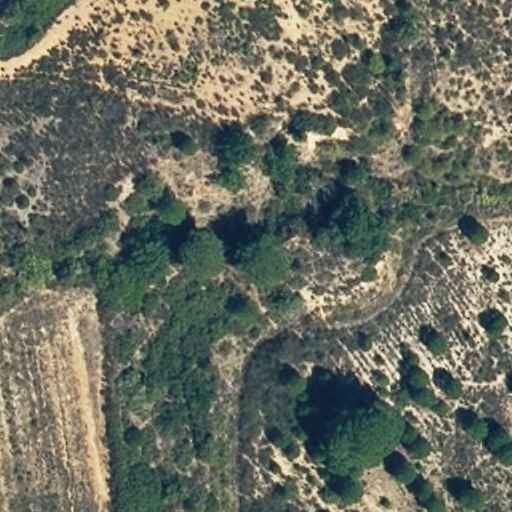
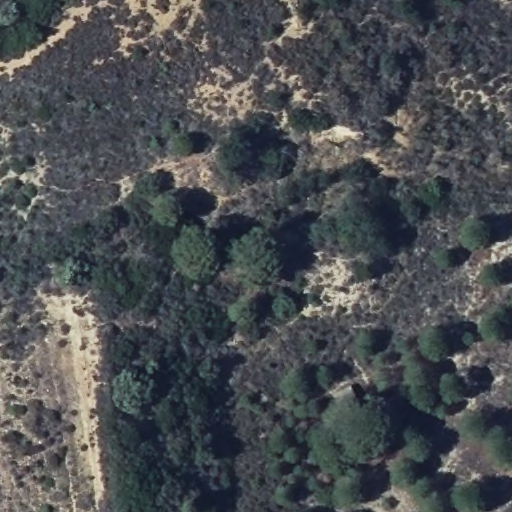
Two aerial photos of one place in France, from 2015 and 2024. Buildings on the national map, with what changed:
unchanged [(365,396),(340,406),(332,393),(355,383),(365,396)]

